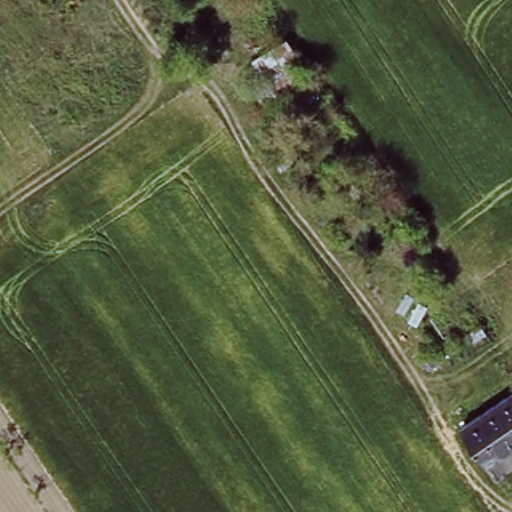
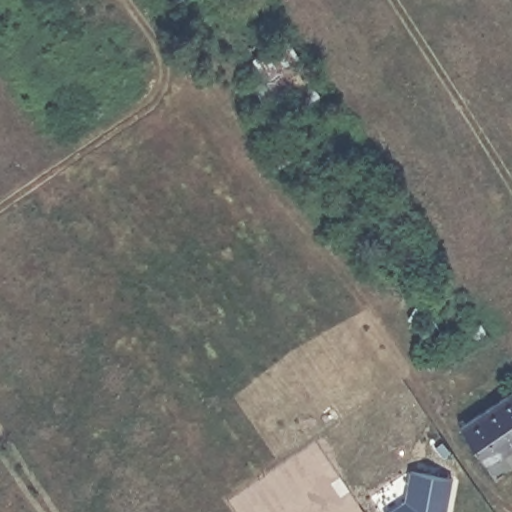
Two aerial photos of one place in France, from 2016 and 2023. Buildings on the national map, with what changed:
unchanged [(293,40),(311,77),(264,106),(253,87),(267,81),(255,59),(293,40)]
unchanged [(457,429),(512,395),(512,457),(486,472),(457,429)]
new [(450,481),(446,512),(391,512),(404,503),(410,473),(450,481)]

